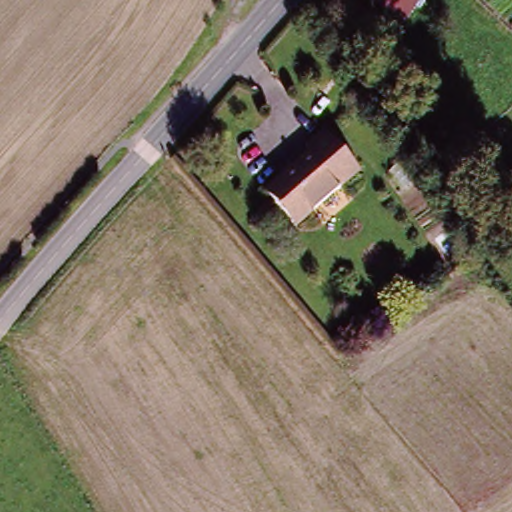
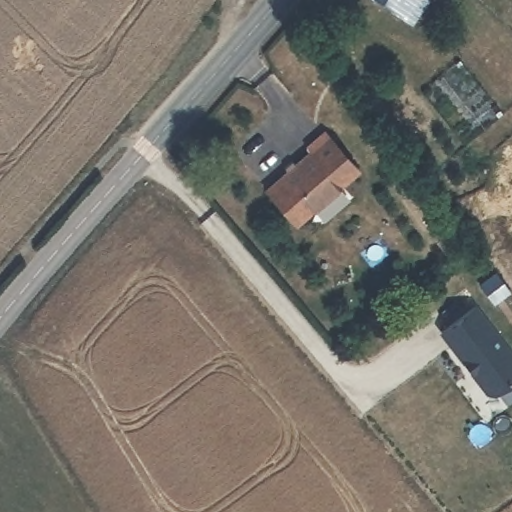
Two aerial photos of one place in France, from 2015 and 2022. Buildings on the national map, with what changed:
unchanged [(390,12),(368,0),(397,0),(390,12)]
unchanged [(297,228),(267,194),(313,155),(309,150),(326,135),(359,175),(297,228)]
new [(473,307),(512,361),(512,378),(491,393),(483,392),(468,372),(470,370),(464,361),(461,363),(439,332),(473,307)]

